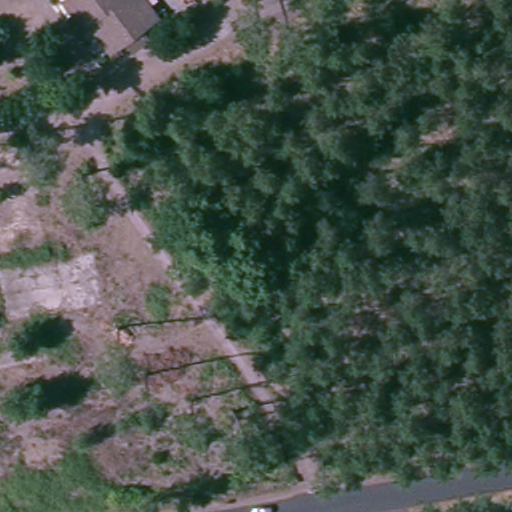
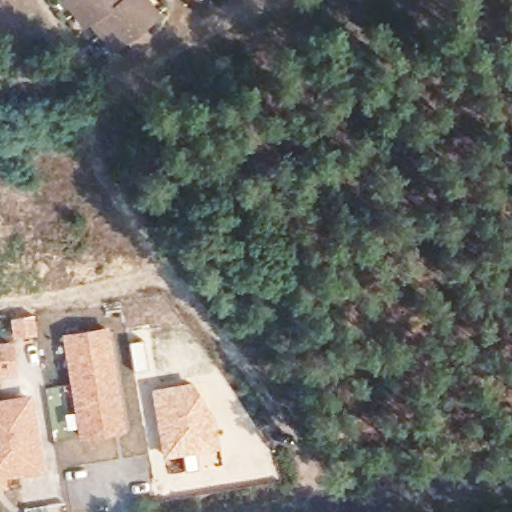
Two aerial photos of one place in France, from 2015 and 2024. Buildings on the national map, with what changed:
unchanged [(152,27),(115,54),(95,27),(87,33),(66,6),(73,0),(122,0),(126,5),(132,0),(133,0),(152,27)]
new [(107,327),(123,428),(81,434),(66,332),(107,327)]
new [(15,375),(0,377),(0,340),(11,338),(15,375)]
new [(194,380),(213,424),(220,464),(195,469),(192,454),(161,458),(148,387),(194,380)]
new [(42,470),(3,475),(4,485),(0,485),(0,402),(28,397),(42,470)]

